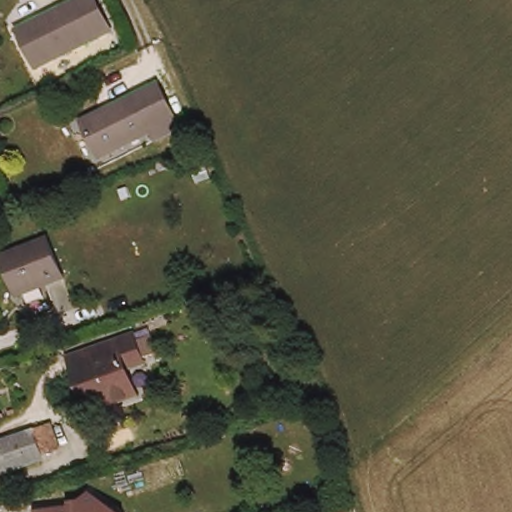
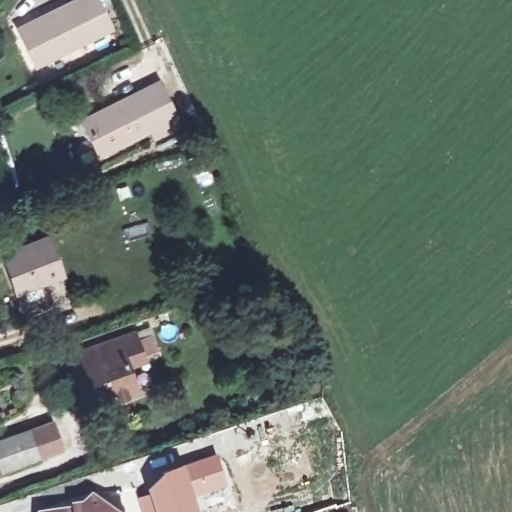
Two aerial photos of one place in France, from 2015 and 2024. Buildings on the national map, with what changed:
unchanged [(36,61),(18,24),(66,0),(98,0),(111,25),(36,61)]
unchanged [(175,127),(152,139),(147,130),(93,155),(77,120),(154,84),(175,127)]
unchanged [(62,276),(18,295),(0,255),(45,236),(62,276)]
unchanged [(134,392),(110,400),(108,396),(92,401),(87,387),(80,390),(67,355),(132,334),(147,328),(155,350),(138,355),(122,361),(134,392)]
unchanged [(0,467),(0,435),(45,421),(55,450),(0,467)]
new [(217,452),(228,486),(194,496),(182,462),(217,452)]
new [(147,490),(145,486),(163,468),(182,462),(194,496),(199,512),(141,512),(136,497),(147,490)]
unchanged [(92,490),(123,511),(124,512),(41,512),(85,503),(92,490)]

